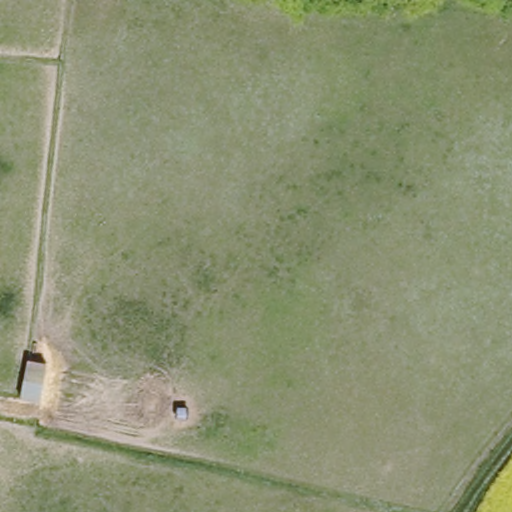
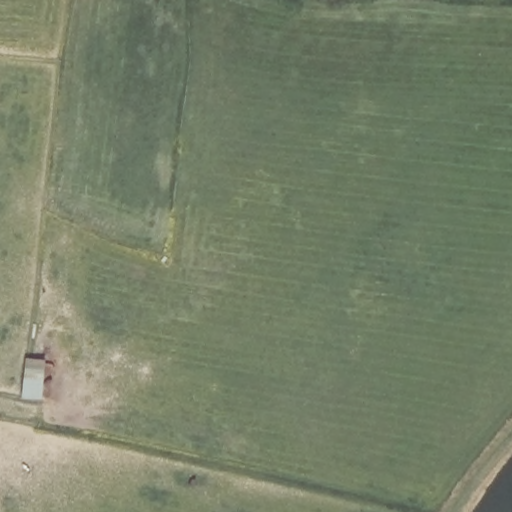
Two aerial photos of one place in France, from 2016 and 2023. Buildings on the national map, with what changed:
unchanged [(27,358),(47,361),(39,402),(20,398),(27,358)]

